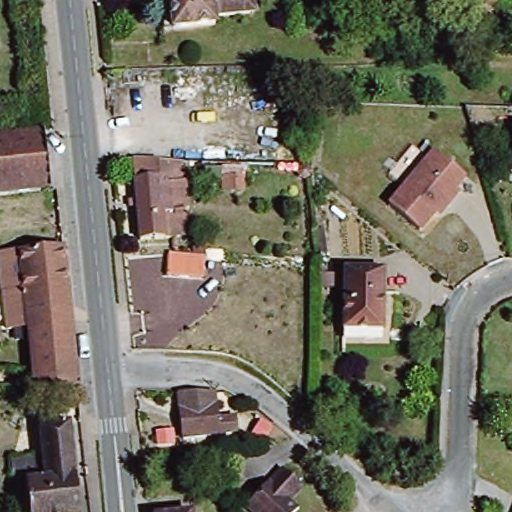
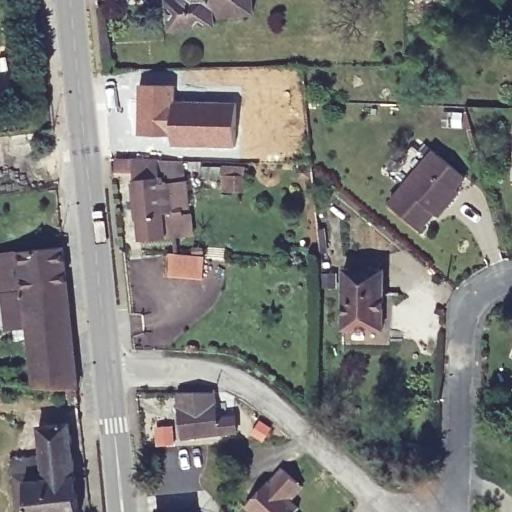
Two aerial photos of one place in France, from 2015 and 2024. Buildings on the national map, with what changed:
unchanged [(253,14),(214,17),(215,26),(165,31),(162,3),(147,5),(147,0),(252,0),(253,14)]
new [(139,84),(176,84),(175,99),(172,136),(138,135),(139,84)]
new [(172,136),(175,99),(238,101),(235,148),(172,146),(172,136)]
unchanged [(57,192),(0,197),(0,138),(49,133),(57,192)]
unchanged [(392,210),(434,153),(467,177),(457,191),(462,194),(449,211),(444,208),(425,233),(392,210)]
unchanged [(172,162),(182,163),(184,187),(172,188),(177,241),(141,244),(134,160),(172,162)]
new [(204,177),(204,167),(225,170),(245,172),(244,191),(224,190),(224,178),(204,177)]
unchanged [(74,286),(84,368),(86,391),(42,387),(27,249),(60,249),(70,250),(74,286)]
unchanged [(22,251),(31,327),(15,329),(5,254),(22,251)]
new [(170,254),(205,257),(202,280),(167,276),(170,254)]
unchanged [(344,328),(346,269),(385,270),(383,330),(344,328)]
unchanged [(189,436),(187,392),(220,392),(222,418),(240,417),(240,434),(189,436)]
unchanged [(45,428),(77,425),(85,512),(23,512),(20,477),(50,475),(45,428)]
unchanged [(275,479),(276,480),(289,466),(309,484),(295,498),(305,507),(299,512),(261,512),(252,503),(275,479)]
unchanged [(170,512),(196,510),(196,512),(170,512)]

